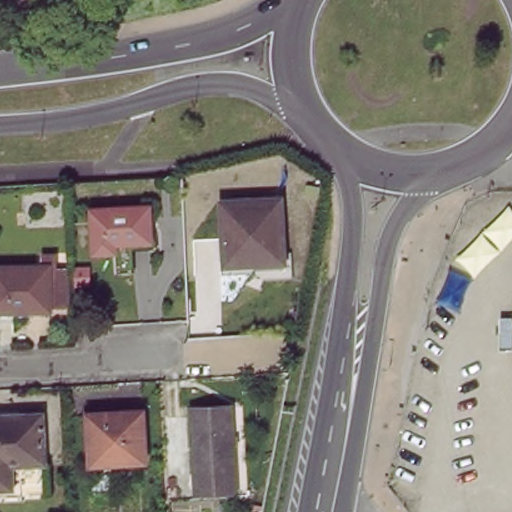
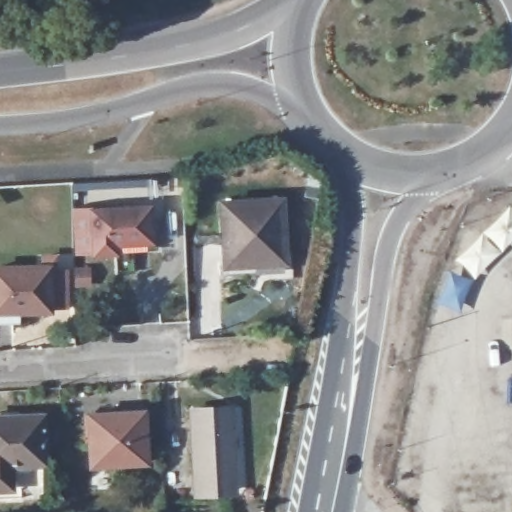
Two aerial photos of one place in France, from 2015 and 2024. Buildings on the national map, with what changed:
unchanged [(280,193),(282,247),(291,247),(291,271),(263,273),(251,267),(223,267),(222,256),(226,256),(223,196),(280,193)]
unchanged [(93,211),(150,208),(151,244),(115,246),(114,254),(94,255),(93,211)]
unchanged [(56,260),(56,306),(18,306),(17,318),(0,318),(0,261),(56,260)]
unchanged [(220,493),(191,493),(191,407),(230,407),(230,475),(230,493),(220,493)]
unchanged [(90,412),(145,410),(146,461),(90,463),(90,412)]
unchanged [(42,413),(41,458),(10,460),(9,482),(0,483),(0,415),(42,413)]

